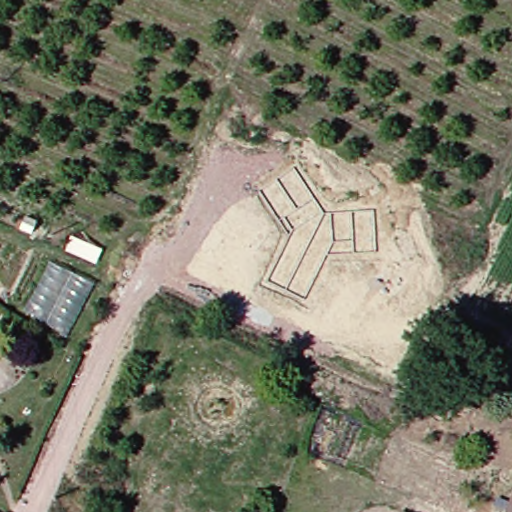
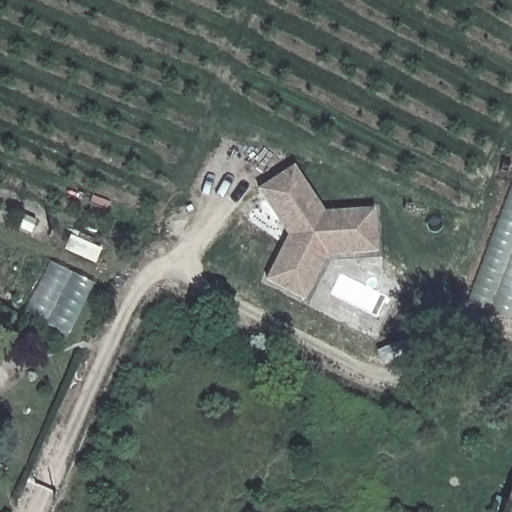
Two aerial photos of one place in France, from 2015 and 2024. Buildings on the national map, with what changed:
new [(286,236),(256,190),(294,167),(324,212),(374,209),(377,252),(326,258),(305,301),(266,280),(286,236)]
new [(512,193),(512,321),(468,304),(512,193)]
new [(92,283),(67,335),(23,311),(47,262),(92,283)]
unchanged [(404,512),(404,511),(406,512),(404,512)]

